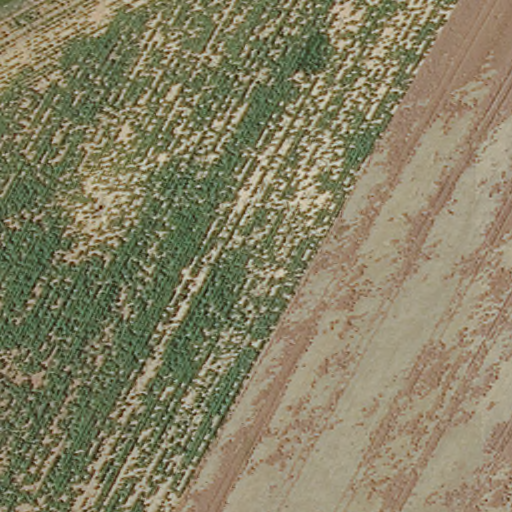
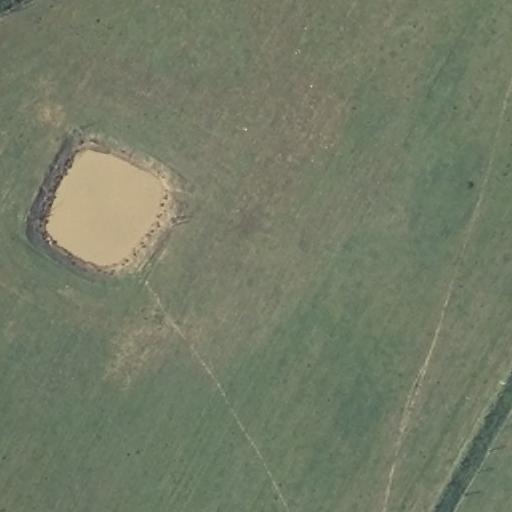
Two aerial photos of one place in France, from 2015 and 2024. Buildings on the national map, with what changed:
[]

